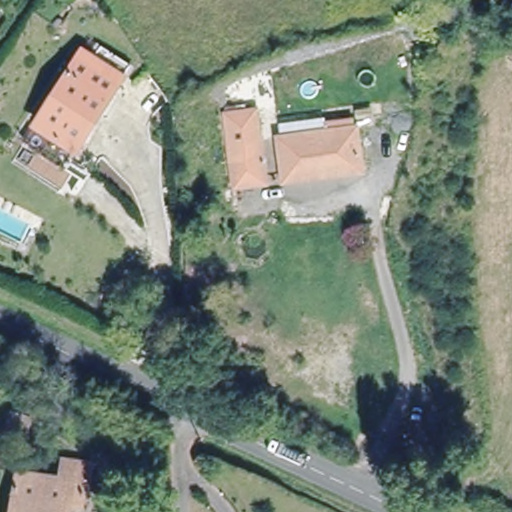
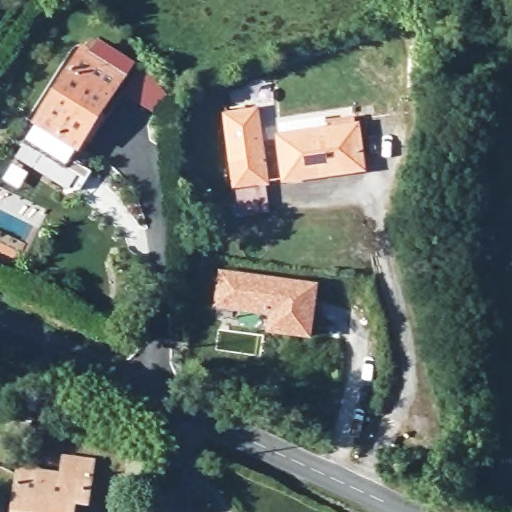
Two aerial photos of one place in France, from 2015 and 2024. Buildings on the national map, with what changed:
unchanged [(71,159),(30,133),(83,47),(125,74),(71,159)]
unchanged [(265,183),(235,187),(225,113),(224,108),(246,105),(247,110),(255,109),(265,183)]
unchanged [(323,175),(285,180),(279,139),(281,139),(279,124),(325,118),(326,122),(353,119),(355,129),(357,128),(361,164),(362,170),(323,175)]
new [(219,275),(314,288),(307,338),(268,332),(270,315),(215,308),(219,275)]
unchanged [(96,488),(95,507),(78,507),(78,512),(2,512),(3,492),(27,495),(29,475),(68,480),(69,468),(97,470),(96,488)]

